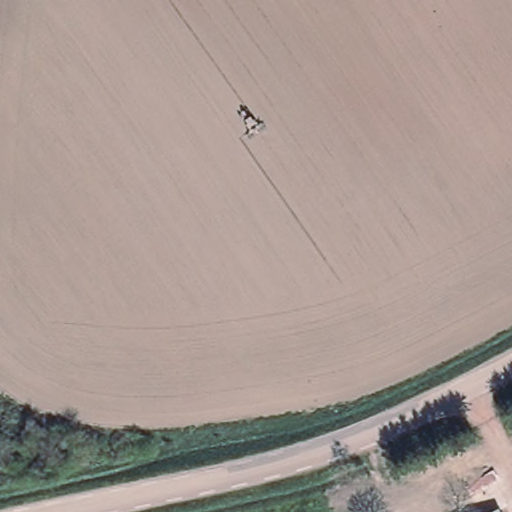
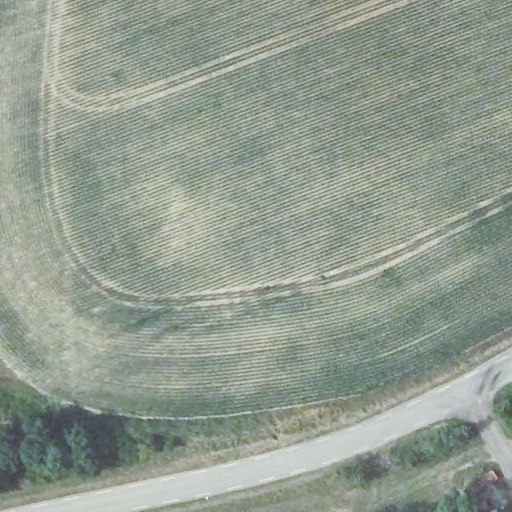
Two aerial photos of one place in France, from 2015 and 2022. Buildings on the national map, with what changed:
unchanged [(500,512),(486,512),(498,507),(500,512)]

